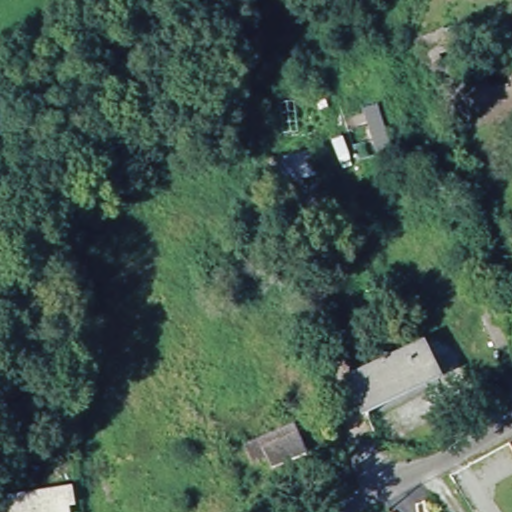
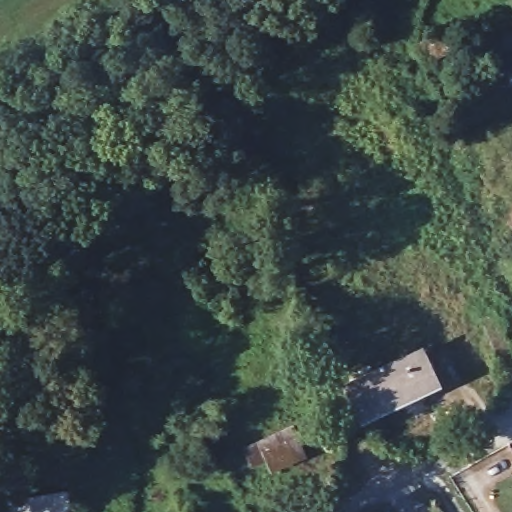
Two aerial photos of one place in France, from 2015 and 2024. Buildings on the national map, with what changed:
unchanged [(273,140),(280,173),(262,177),(260,170),(254,144),(273,140)]
unchanged [(487,274),(509,309),(496,316),(473,283),(487,274)]
unchanged [(425,340),(443,378),(363,413),(347,378),(425,340)]
unchanged [(295,421),(310,455),(254,478),(237,443),(295,421)]
unchanged [(64,487),(67,502),(62,503),(63,512),(10,512),(7,501),(64,487)]

